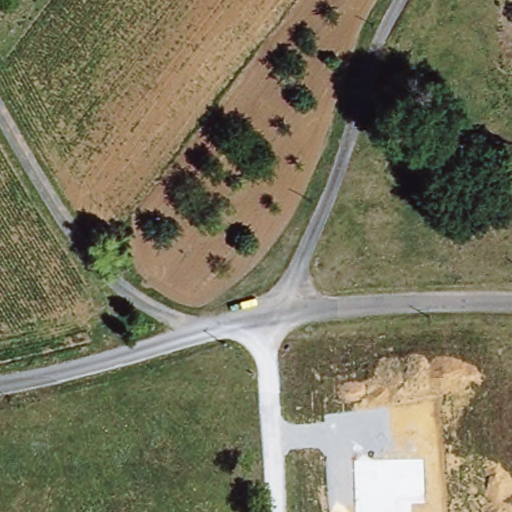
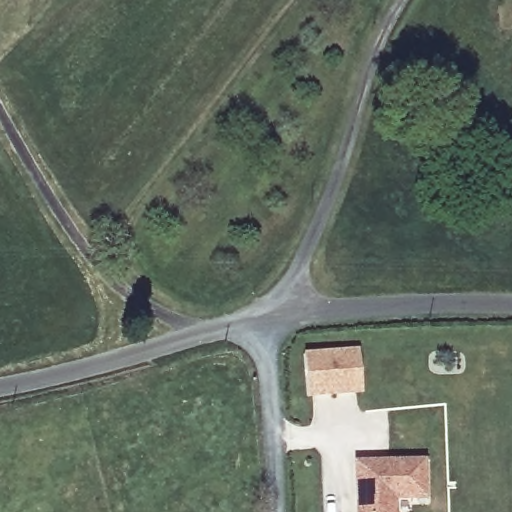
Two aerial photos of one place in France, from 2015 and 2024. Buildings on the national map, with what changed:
new [(363,394),(309,398),(305,353),(358,349),(363,394)]
new [(428,500),(397,501),(397,512),(355,512),(353,461),(427,458),(428,500)]

